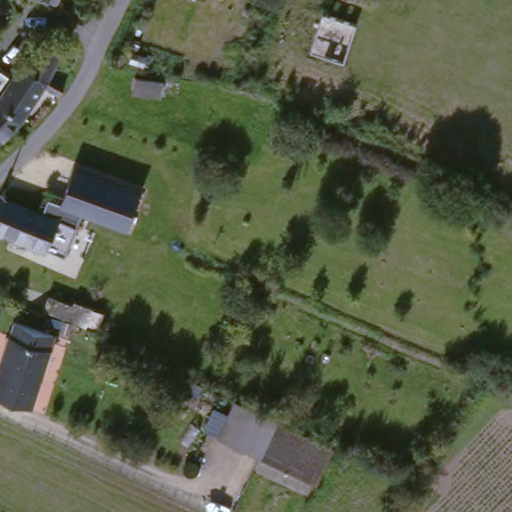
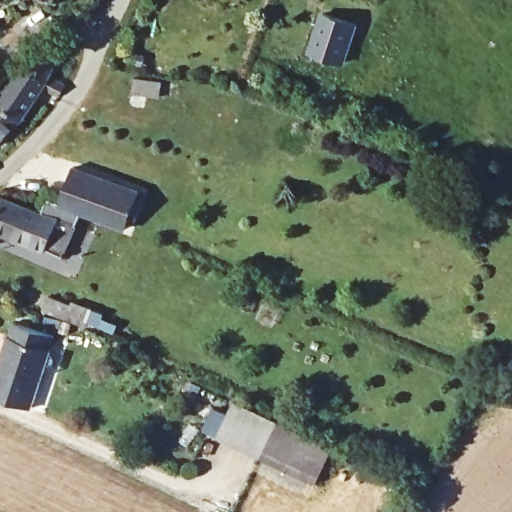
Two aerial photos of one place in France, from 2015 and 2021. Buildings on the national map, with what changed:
new [(326,10),(360,21),(346,60),(312,49),(326,10)]
unchanged [(64,97),(47,89),(26,122),(4,106),(1,103),(26,66),(34,71),(41,54),(51,37),(69,46),(54,77),(69,86),(64,97)]
unchanged [(164,81),(159,96),(132,90),(136,74),(164,81)]
unchanged [(26,122),(0,145),(0,103),(1,103),(4,106),(26,122)]
unchanged [(42,215),(47,198),(61,202),(72,166),(139,188),(127,225),(82,211),(77,224),(78,225),(66,256),(47,247),(46,250),(0,232),(0,203),(2,199),(35,213),(42,215)]
unchanged [(46,308),(51,294),(71,303),(77,300),(93,307),(87,322),(46,308)]
unchanged [(60,335),(29,406),(0,394),(0,362),(19,316),(60,335)]
unchanged [(219,435),(236,398),(280,418),(263,455),(219,435)]
unchanged [(337,444),(320,481),(263,455),(280,418),(337,444)]

